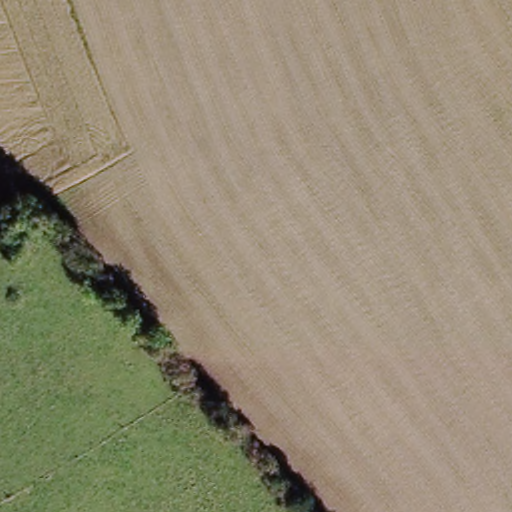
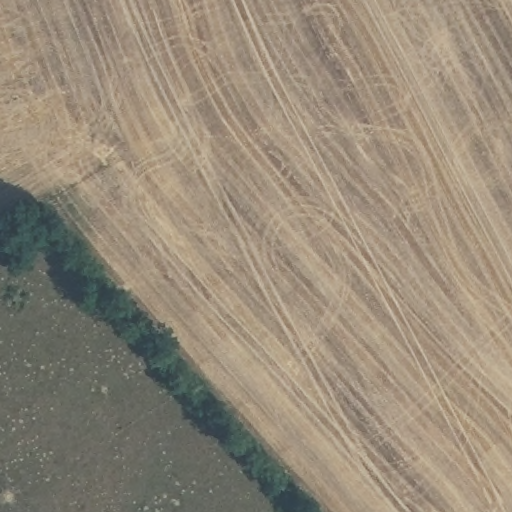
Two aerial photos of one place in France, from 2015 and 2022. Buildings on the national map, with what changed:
[]

